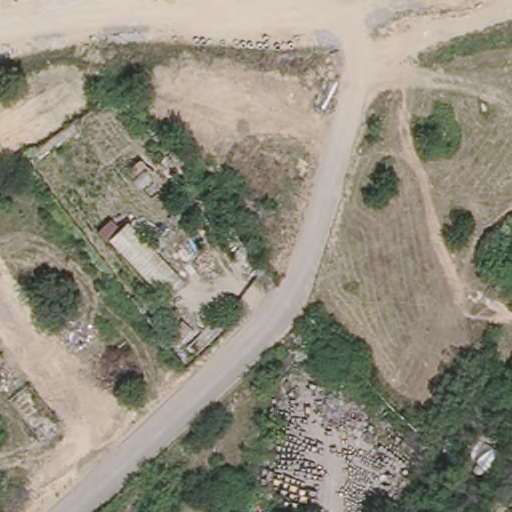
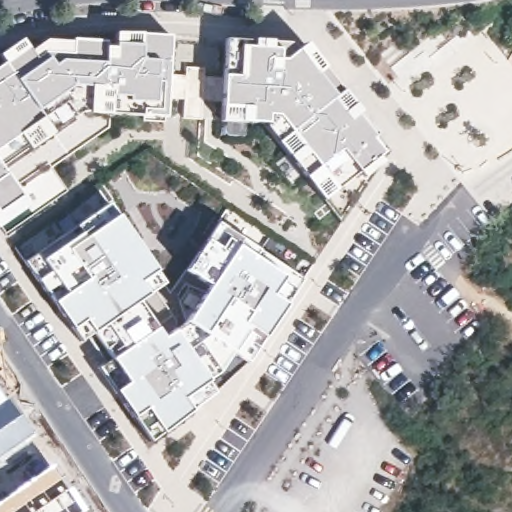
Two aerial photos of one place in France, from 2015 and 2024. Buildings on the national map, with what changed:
new [(0,56),(0,55),(22,40),(31,51),(47,40),(72,41),(115,42),(116,31),(172,36),(165,116),(89,111),(80,110),(0,161),(0,66),(5,63),(0,56)]
new [(225,40),(293,45),(298,50),(306,42),(373,134),(369,136),(381,151),(376,155),(381,161),(343,225),(322,197),(264,123),(241,122),(242,106),(222,105),(224,75),(225,40)]
new [(0,225),(0,162),(30,204),(0,225)]
new [(110,204),(163,282),(139,299),(164,338),(190,322),(211,284),(186,271),(219,220),(305,280),(249,361),(234,351),(219,373),(209,380),(217,393),(151,440),(98,367),(111,358),(93,330),(79,338),(26,261),(110,204)]
demolished [(135,225),(192,285),(174,303),(117,243),(135,225)]
new [(0,404),(0,394),(5,400),(0,404)]
new [(6,399),(16,415),(0,425),(0,404),(5,400),(6,399)]
new [(32,433),(0,456),(0,425),(19,412),(32,433)]
new [(60,480),(13,512),(0,512),(0,499),(49,465),(60,480)]
new [(66,488),(69,486),(84,512),(13,512),(60,480),(66,488)]

